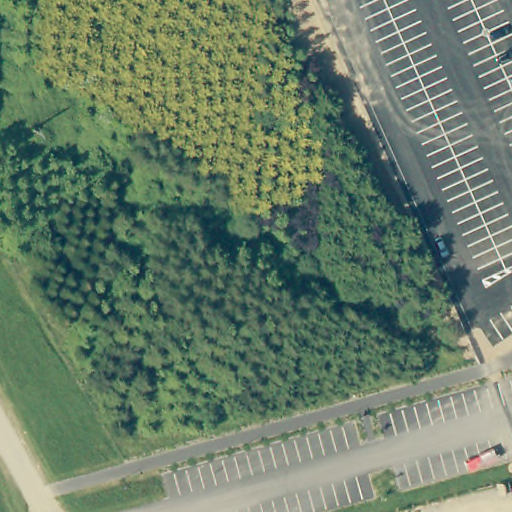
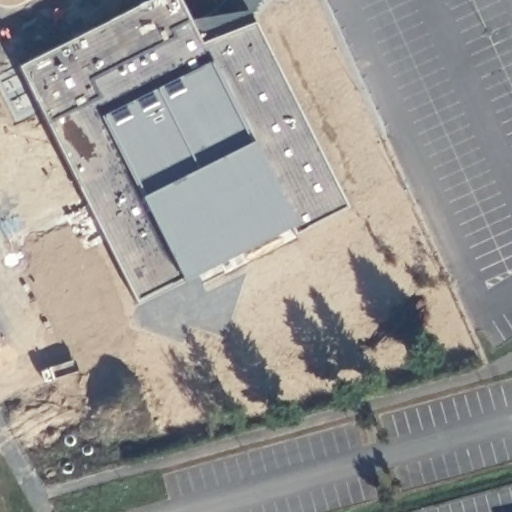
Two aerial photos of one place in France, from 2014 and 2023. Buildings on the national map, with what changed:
new [(192,45),(248,26),(342,213),(287,242),(280,229),(126,306),(8,69),(144,0),(170,0),(192,45)]
demolished [(461,92),(406,120),(380,66),(435,39),(461,92)]
new [(280,229),(287,242),(193,288),(187,276),(280,229)]

